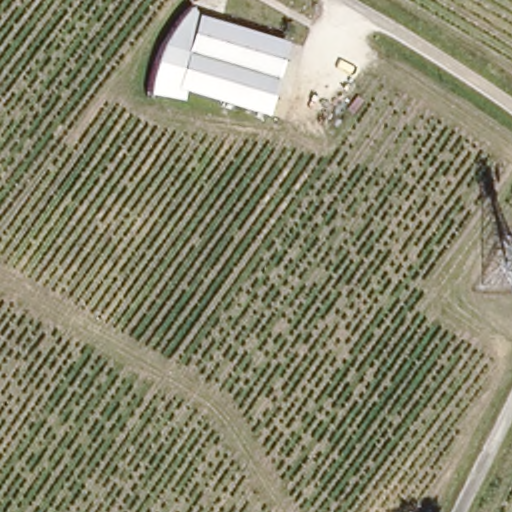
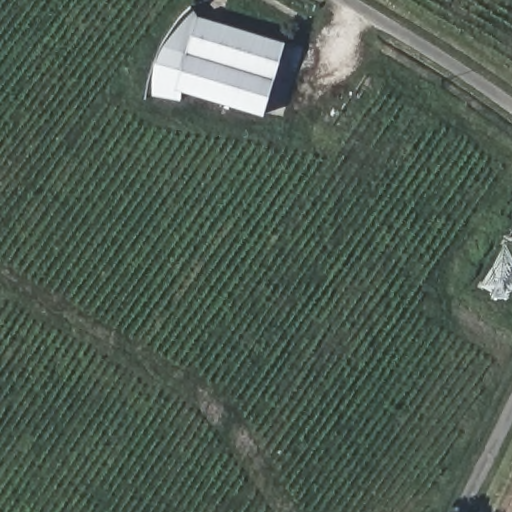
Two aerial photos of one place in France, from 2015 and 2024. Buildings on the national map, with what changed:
unchanged [(262,112),(180,87),(176,100),(145,95),(152,55),(160,32),(185,6),(283,38),(262,112)]

